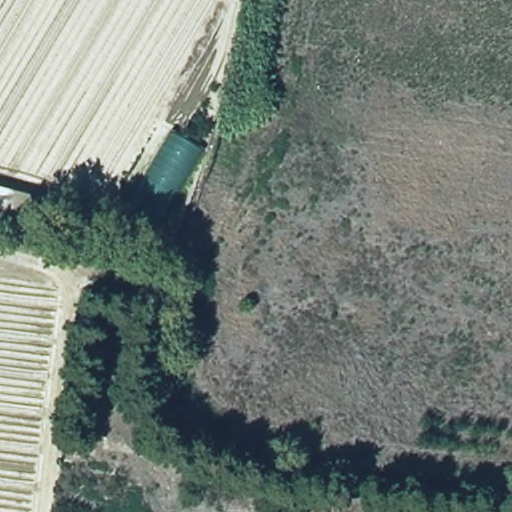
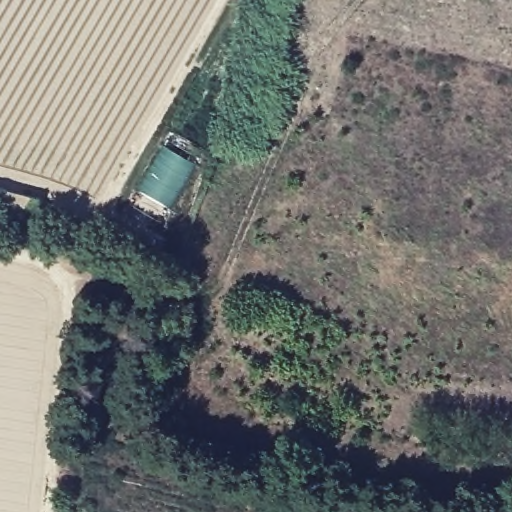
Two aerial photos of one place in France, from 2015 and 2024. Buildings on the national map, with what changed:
unchanged [(200,151),(160,229),(123,210),(165,131),(200,151)]
unchanged [(40,199),(33,219),(0,210),(0,187),(40,199)]

